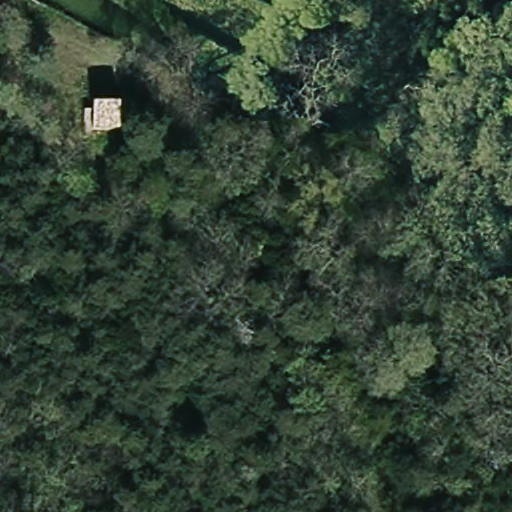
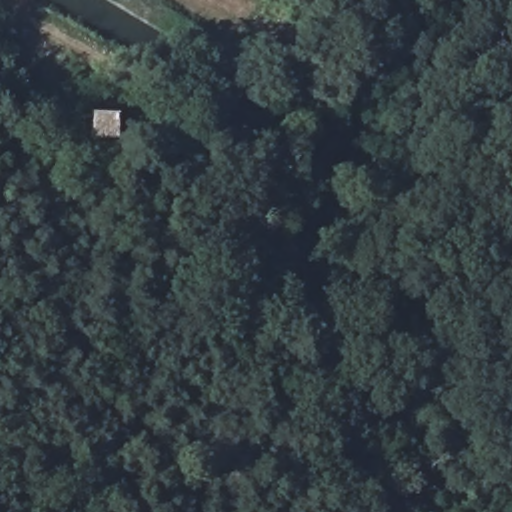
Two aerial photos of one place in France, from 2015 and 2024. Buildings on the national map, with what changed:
unchanged [(122,100),(122,143),(93,145),(91,100),(122,100)]

